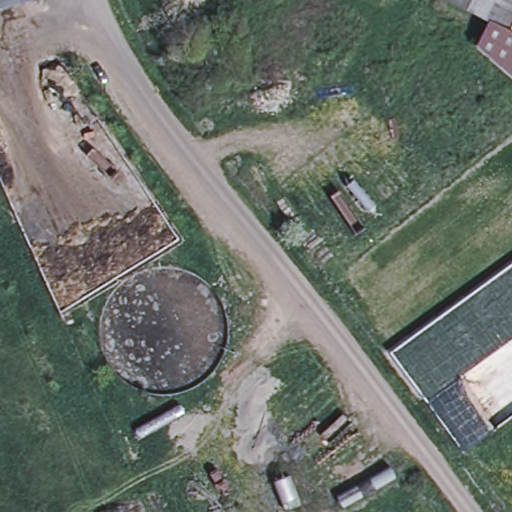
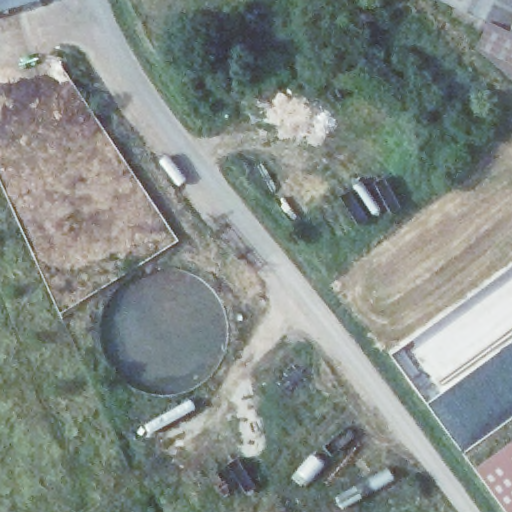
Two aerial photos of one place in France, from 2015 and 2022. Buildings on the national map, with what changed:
unchanged [(0,8),(0,0),(21,0),(0,8)]
unchanged [(512,27),(454,0),(512,0),(512,27)]
unchanged [(512,69),(485,46),(495,22),(512,30),(512,69)]
new [(512,512),(506,512),(473,469),(512,442),(512,512)]

